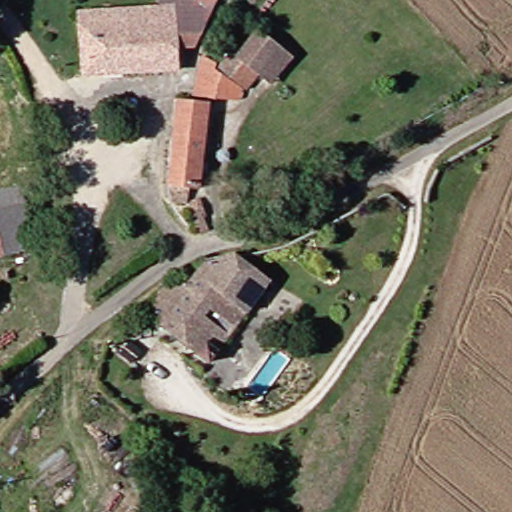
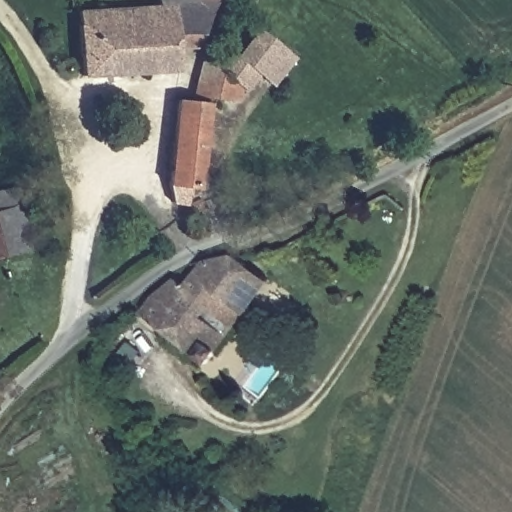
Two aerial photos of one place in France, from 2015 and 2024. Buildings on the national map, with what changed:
unchanged [(93,74),(93,7),(175,5),(175,0),(230,0),(208,42),(192,43),(191,70),(143,71),(109,72),(93,74)]
unchanged [(269,30),(301,58),(283,85),(269,75),(249,100),(206,94),(214,61),(234,65),(247,57),(269,30)]
unchanged [(190,104),(222,109),(211,188),(198,186),(194,206),(176,205),(190,104)]
unchanged [(0,194),(25,187),(43,245),(14,255),(0,260),(0,194)]
unchanged [(281,280),(254,310),(203,273),(219,251),(232,245),(281,280)]
unchanged [(191,266),(203,273),(254,310),(219,360),(143,307),(158,287),(191,266)]

